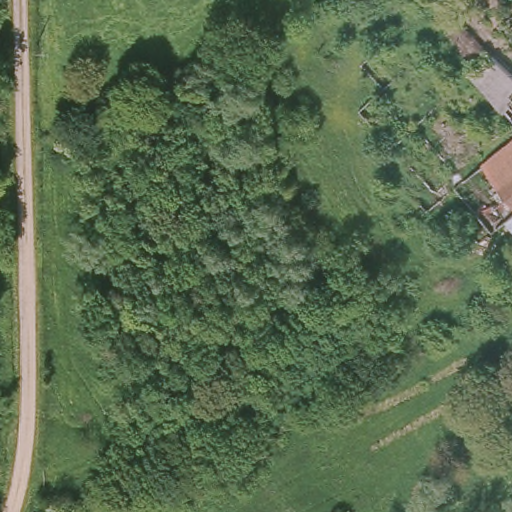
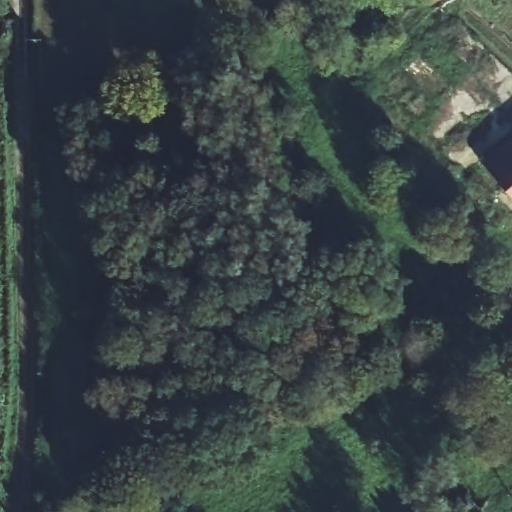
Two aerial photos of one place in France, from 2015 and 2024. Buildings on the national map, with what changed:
unchanged [(512,136),(512,188),(486,158),(512,136)]

